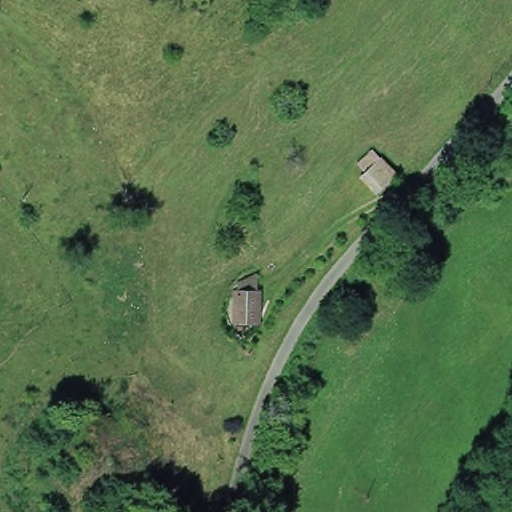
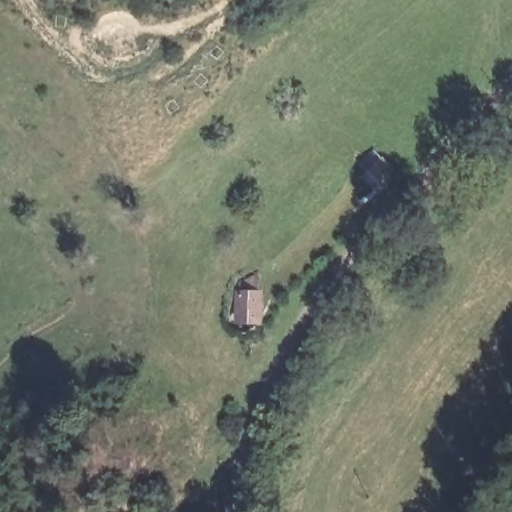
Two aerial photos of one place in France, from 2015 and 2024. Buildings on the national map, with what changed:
unchanged [(383,164),(398,182),(380,199),(361,183),(383,164)]
unchanged [(267,297),(262,331),(234,332),(234,298),(267,297)]

